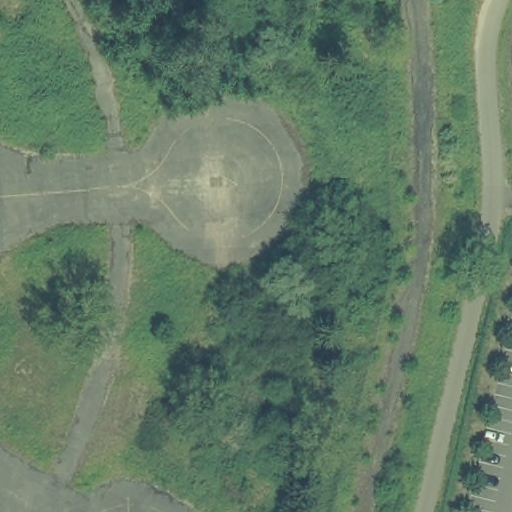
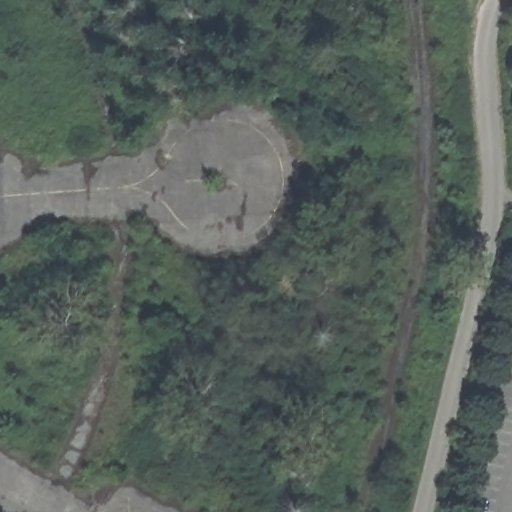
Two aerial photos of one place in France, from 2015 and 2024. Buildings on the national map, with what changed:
[]

